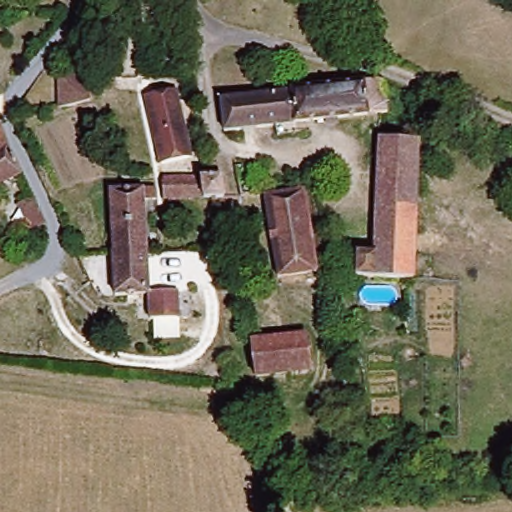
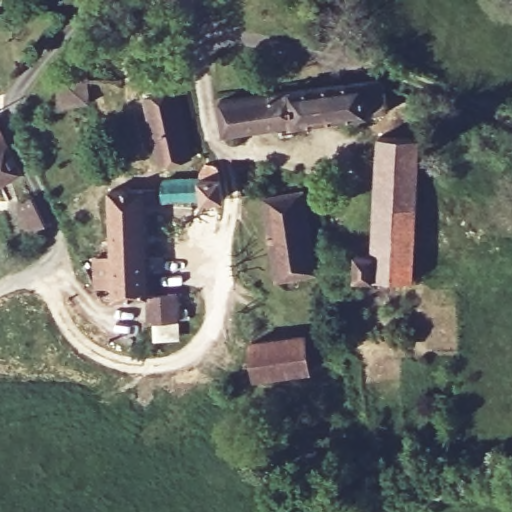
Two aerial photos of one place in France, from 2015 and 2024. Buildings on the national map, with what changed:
unchanged [(224,140),(218,90),(271,84),(371,74),(384,79),(388,120),(224,140)]
unchanged [(96,84),(96,105),(49,111),(46,85),(93,75),(96,84)]
unchanged [(191,160),(159,166),(148,95),(178,90),(191,160)]
unchanged [(9,144),(0,148),(0,124),(9,144)]
unchanged [(404,285),(355,285),(364,249),(379,250),(385,144),(423,141),(410,285),(404,285)]
unchanged [(21,175),(0,183),(0,148),(9,144),(21,175)]
unchanged [(164,205),(160,180),(205,171),(204,165),(219,161),(225,197),(164,205)]
unchanged [(104,193),(156,185),(158,202),(143,206),(144,254),(113,257),(110,234),(104,193)]
unchanged [(304,194),(314,277),(275,280),(267,200),(304,194)]
unchanged [(37,195),(48,224),(28,232),(16,204),(37,195)]
unchanged [(172,285),(174,315),(146,321),(144,292),(114,294),(113,257),(144,254),(148,287),(172,285)]
unchanged [(306,337),(310,374),(255,379),(251,342),(306,337)]
unchanged [(276,498),(276,502),(274,507),(269,509),(264,506),(263,501),(266,496),(270,495),(276,498)]

